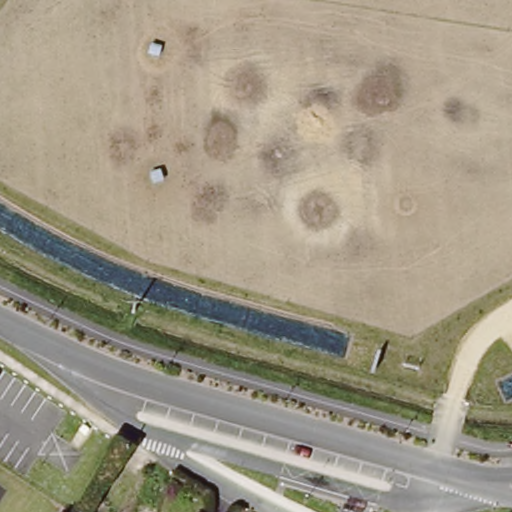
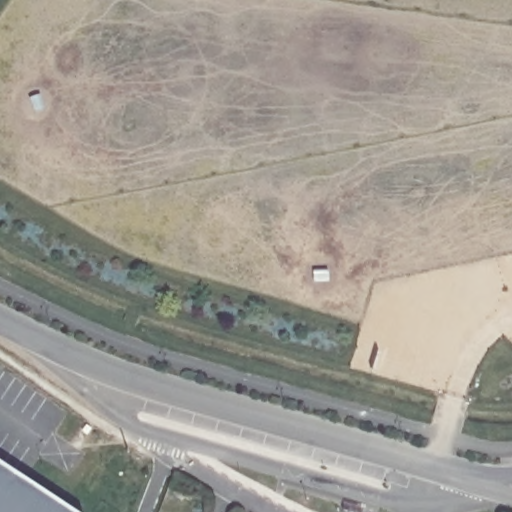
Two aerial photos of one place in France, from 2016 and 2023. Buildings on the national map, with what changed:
new [(73,512),(0,512),(0,463),(73,512)]

